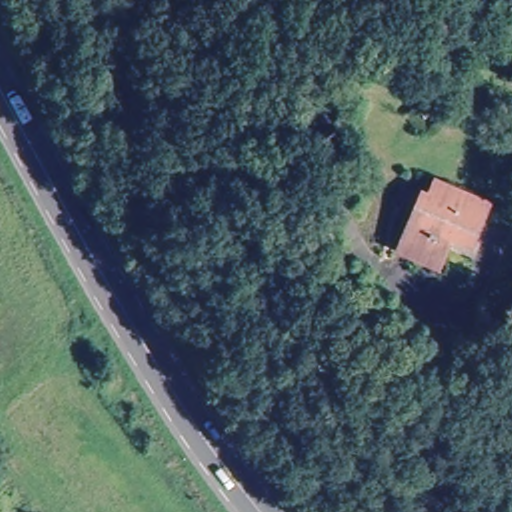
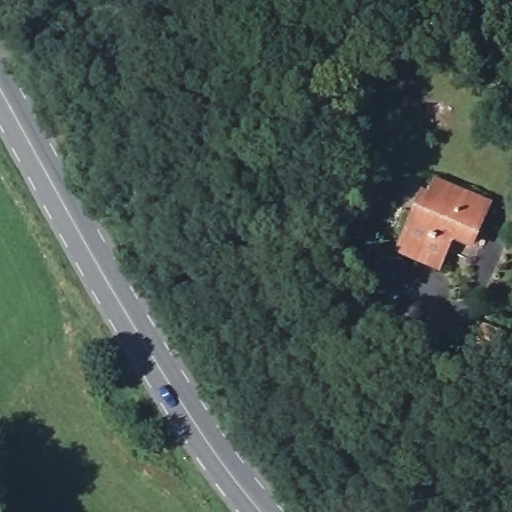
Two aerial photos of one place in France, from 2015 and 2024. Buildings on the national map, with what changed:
unchanged [(471,257),(450,251),(440,273),(394,256),(419,194),(429,196),(434,180),(491,205),(471,257)]

